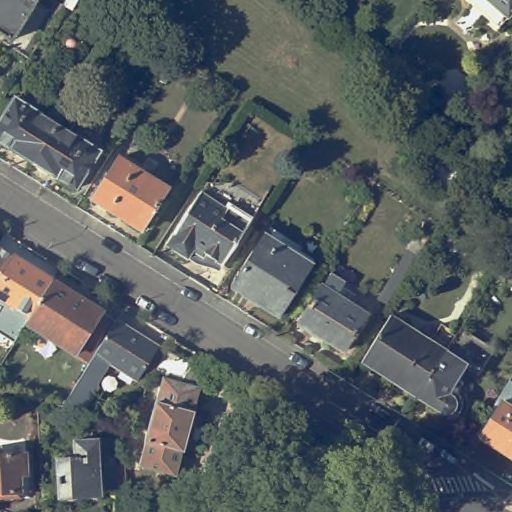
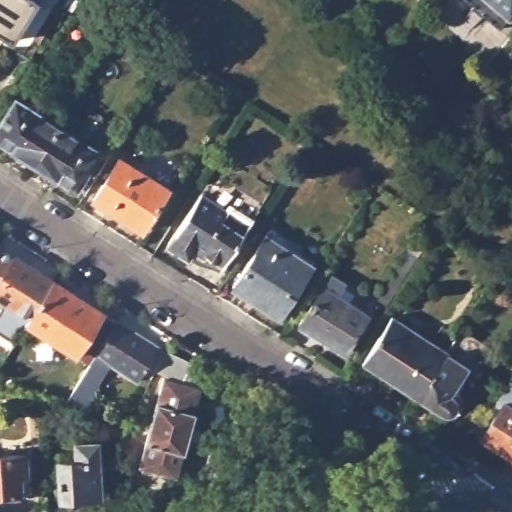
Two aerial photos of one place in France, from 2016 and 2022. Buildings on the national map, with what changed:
unchanged [(22,50),(10,41),(13,36),(0,28),(0,0),(40,0),(50,6),(22,50)]
unchanged [(512,11),(504,20),(480,0),(512,0),(512,11)]
unchanged [(0,142),(0,137),(22,102),(62,128),(39,167),(0,142)]
unchanged [(106,155),(81,194),(39,167),(62,128),(106,155)]
unchanged [(425,174),(438,156),(457,170),(444,189),(425,174)]
unchanged [(95,199),(121,158),(167,186),(141,229),(95,199)]
unchanged [(210,185),(232,181),(263,200),(254,219),(222,267),(177,240),(207,190),(210,185)]
unchanged [(232,287),(270,229),(285,237),(281,244),(312,264),(279,316),(232,287)]
unchanged [(378,298),(422,230),(430,235),(387,303),(378,298)]
unchanged [(0,332),(0,308),(2,306),(0,305),(0,247),(7,251),(15,256),(16,255),(55,280),(27,325),(16,341),(0,332)]
unchanged [(344,352),(299,324),(324,285),(328,277),(341,284),(336,292),(368,313),(344,352)]
unchanged [(102,311),(102,312),(117,321),(90,364),(27,325),(55,280),(102,311)]
unchanged [(421,397),(367,363),(397,316),(451,350),(421,397)]
unchanged [(111,364),(98,385),(99,388),(85,411),(67,400),(90,364),(117,321),(117,320),(160,348),(139,382),(111,364)]
unchanged [(497,349),(481,375),(470,368),(455,391),(456,394),(457,395),(458,395),(459,396),(460,397),(460,398),(461,400),(462,401),(462,402),(462,403),(461,405),(461,406),(460,407),(459,410),(458,410),(457,411),(457,412),(455,413),(453,413),(452,415),(451,415),(450,415),(449,415),(448,414),(447,413),(421,397),(451,350),(465,328),(497,349)]
unchanged [(76,379),(57,409),(36,396),(54,366),(76,379)]
unchanged [(160,405),(167,380),(204,391),(188,455),(148,441),(160,405)]
unchanged [(504,403),(512,408),(512,454),(484,437),(504,403)]
unchanged [(57,465),(75,463),(74,446),(112,444),(116,493),(100,494),(100,500),(60,502),(57,465)]
unchanged [(31,450),(32,468),(25,470),(27,495),(0,496),(0,452),(31,450)]

